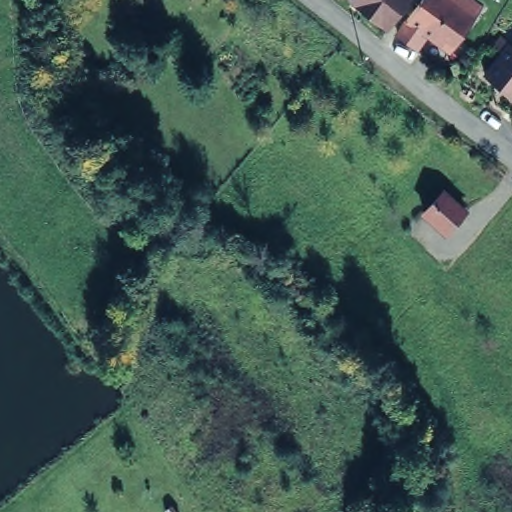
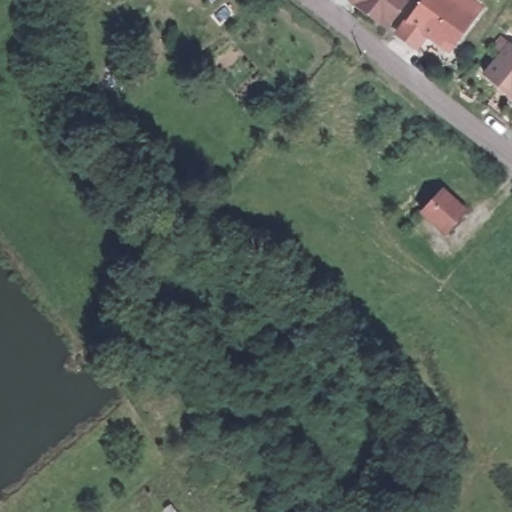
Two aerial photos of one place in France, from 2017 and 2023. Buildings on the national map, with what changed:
unchanged [(352,0),(406,0),(387,26),(352,0)]
unchanged [(449,50),(424,34),(414,47),(396,33),(418,0),(473,0),(481,6),(449,50)]
unchanged [(512,99),(482,76),(509,44),(512,47),(512,99)]
unchanged [(437,226),(421,212),(439,190),(462,209),(452,220),(443,231),(437,226)]

